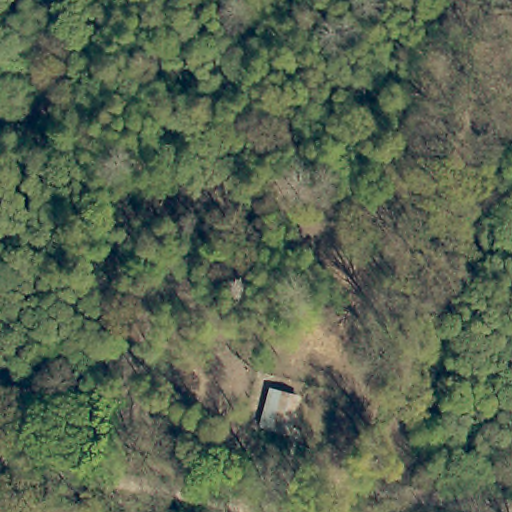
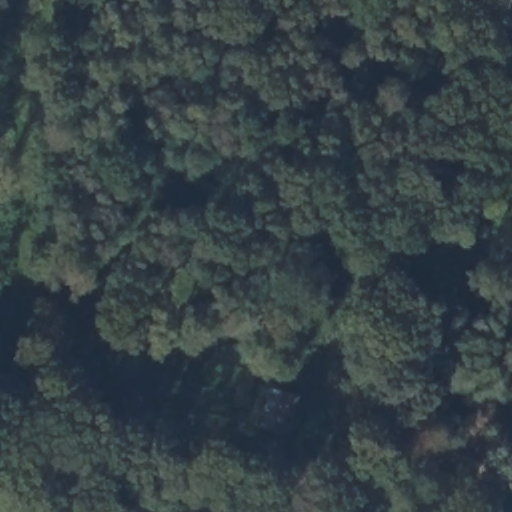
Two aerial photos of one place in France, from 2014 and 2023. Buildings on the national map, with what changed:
unchanged [(300,398),(289,437),(258,427),(270,390),(300,398)]

